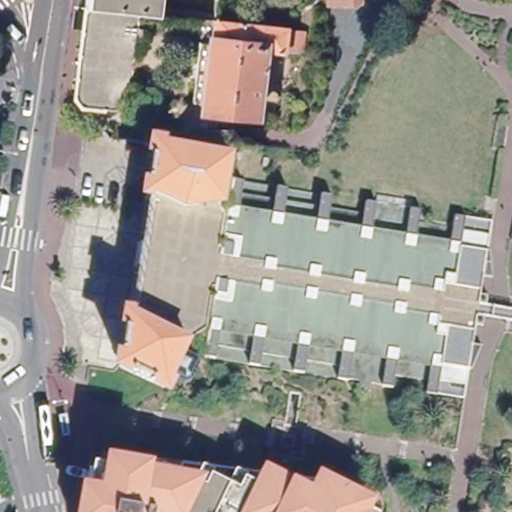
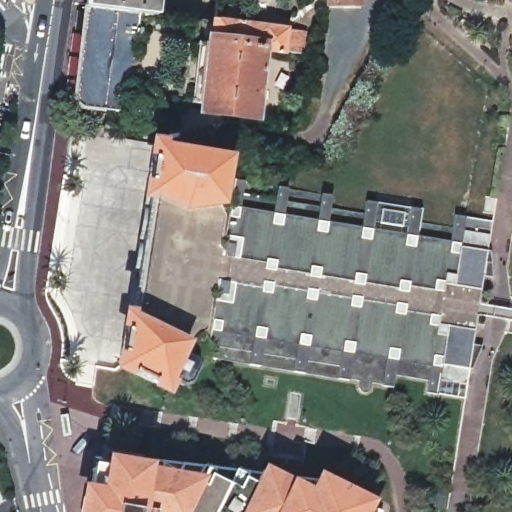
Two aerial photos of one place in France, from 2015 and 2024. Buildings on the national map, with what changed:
unchanged [(161,15),(143,14),(91,8),(91,0),(163,0),(161,15)]
unchanged [(327,6),(327,0),(358,0),(358,5),(327,6)]
unchanged [(140,39),(133,111),(86,105),(81,97),(91,8),(143,14),(140,39)]
unchanged [(225,25),(310,32),(308,55),(270,52),(271,49),(223,45),(225,25)]
unchanged [(217,47),(217,44),(223,45),(271,49),(270,52),(265,114),(212,110),(212,107),(200,107),(206,46),(217,47)]
unchanged [(442,377),(440,390),(428,388),(433,358),(401,353),(397,383),(385,381),(389,351),(356,347),(351,376),(339,375),(343,345),(315,341),(311,370),(295,368),(299,339),(267,334),(263,364),(251,362),(256,332),(223,327),(219,357),(209,356),(205,358),(208,364),(202,380),(193,384),(178,377),(173,387),(126,365),(159,144),(239,156),(235,178),(245,179),(241,208),(272,213),(276,182),(287,184),(283,214),(314,219),(319,189),(333,191),(328,221),(360,225),(364,195),(377,197),(373,227),(405,232),(410,202),(421,204),(417,234),(449,238),(453,208),(466,210),(464,225),(479,227),(458,380),(442,377)]
unchanged [(488,228),(489,244),(492,244),(494,273),(484,271),(482,291),(488,291),(483,321),(476,320),(474,339),(482,340),(474,364),(470,364),(468,381),(458,380),(479,227),(488,228)]
unchanged [(91,465),(100,466),(102,450),(143,454),(301,476),(315,483),(317,479),(346,493),(349,487),(357,491),(354,497),(382,511),(381,512),(84,512),(88,489),(91,465)]

